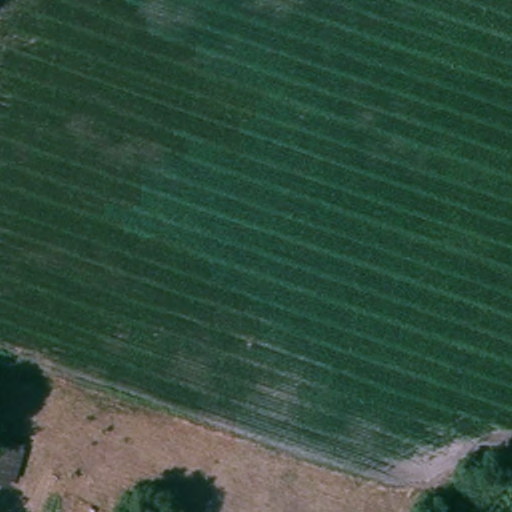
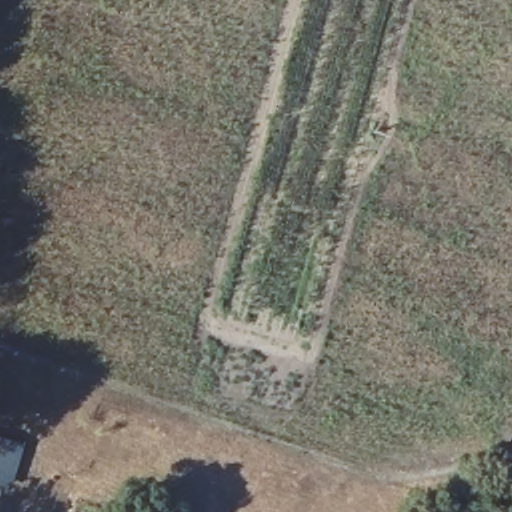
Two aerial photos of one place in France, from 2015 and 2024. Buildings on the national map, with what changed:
unchanged [(21,450),(8,478),(0,474),(0,441),(21,450)]

